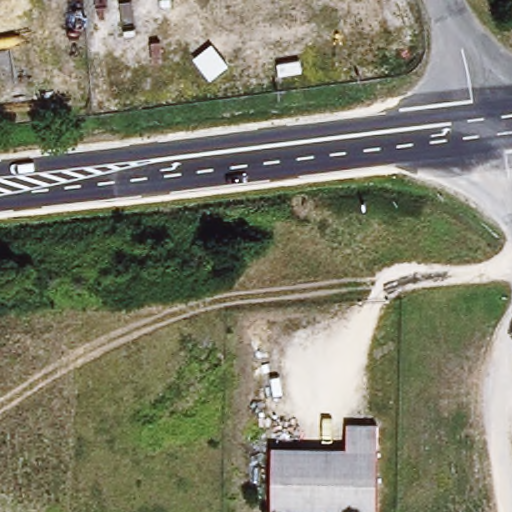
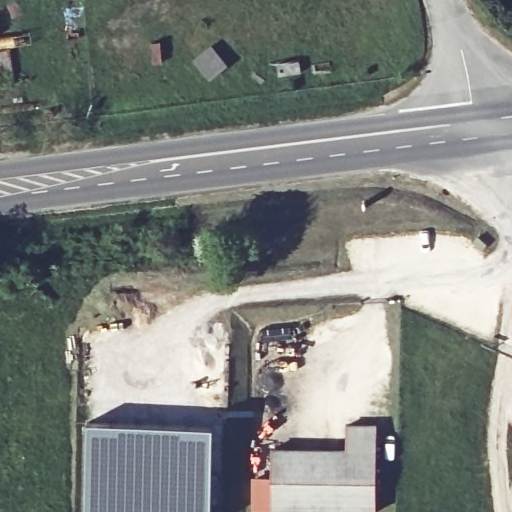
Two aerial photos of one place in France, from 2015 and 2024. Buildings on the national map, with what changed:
new [(212,512),(86,512),(89,424),(214,426),(212,512)]
unchanged [(270,451),(345,452),(345,427),(375,428),(375,512),(270,512),(270,451)]

